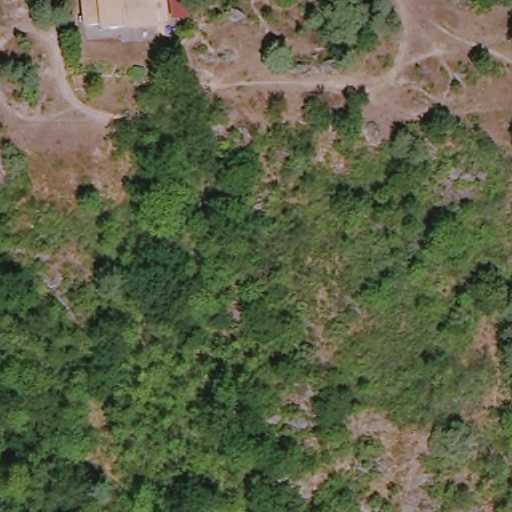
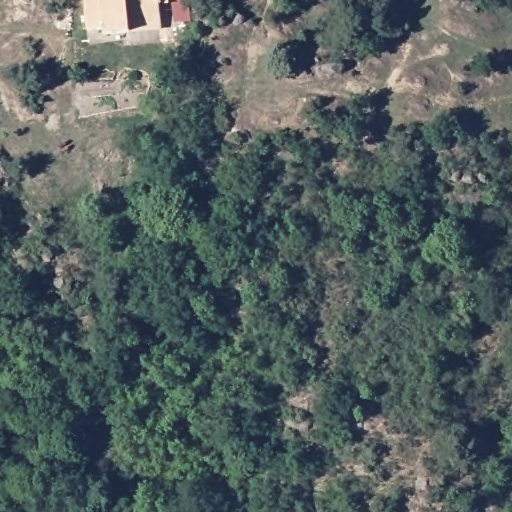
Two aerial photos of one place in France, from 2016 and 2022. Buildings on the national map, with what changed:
unchanged [(125,17),(126,30),(100,35),(98,27),(84,29),(81,0),(155,0),(155,12),(125,17)]

